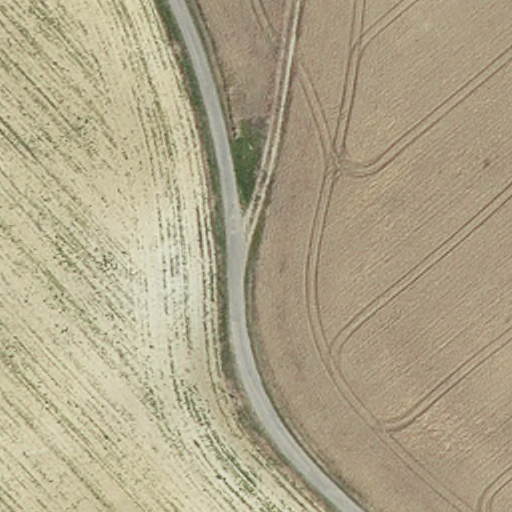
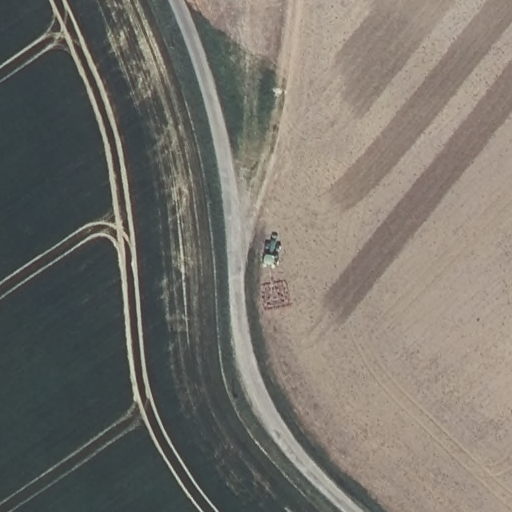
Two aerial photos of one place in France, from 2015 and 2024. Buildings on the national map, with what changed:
[]

